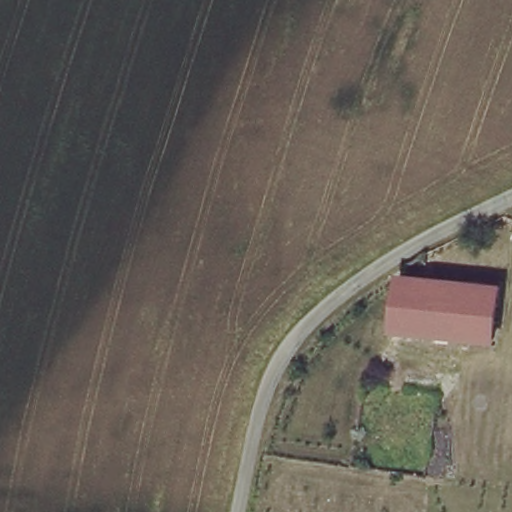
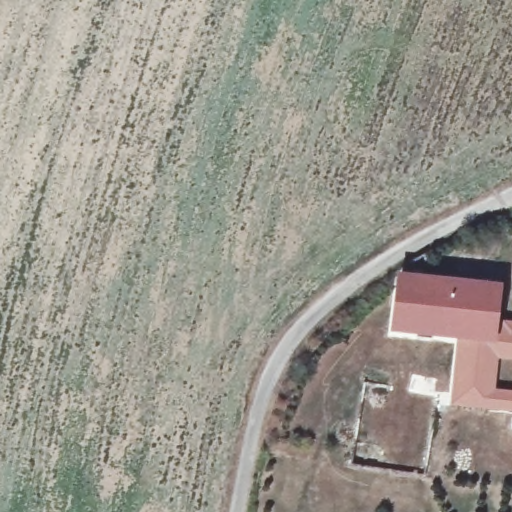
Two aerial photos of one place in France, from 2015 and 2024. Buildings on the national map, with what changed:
unchanged [(427,280),(496,287),(494,322),(491,336),(458,334),(399,328),(404,277),(427,280)]
new [(503,317),(512,318),(512,368),(499,367),(498,388),(512,389),(512,411),(451,405),(458,334),(491,336),(494,322),(503,323),(503,317)]
demolished [(376,468),(348,464),(353,441),(380,444),(376,468)]

